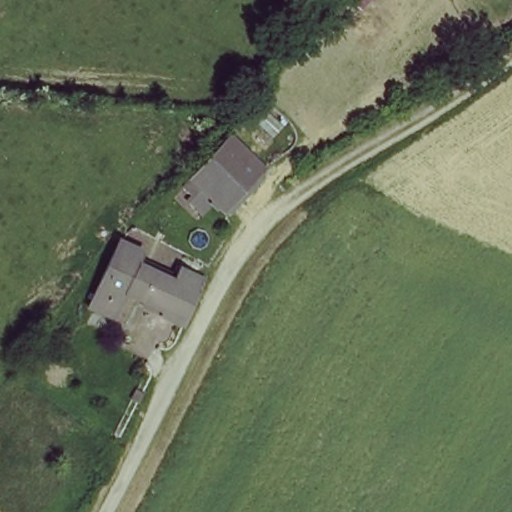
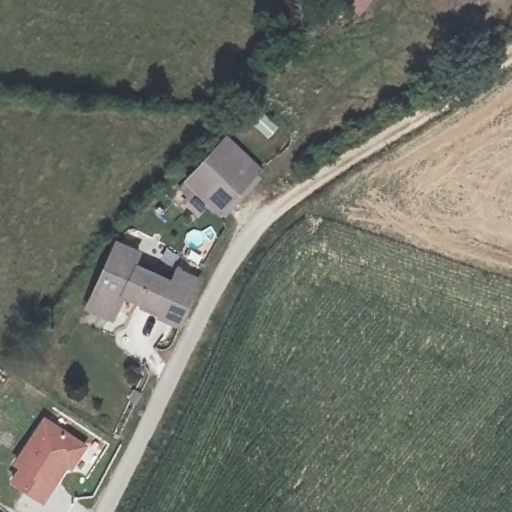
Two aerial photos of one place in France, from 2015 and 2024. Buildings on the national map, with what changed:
unchanged [(222,207),(188,176),(225,136),(260,168),(222,207)]
unchanged [(172,281),(177,267),(205,278),(200,288),(181,323),(125,300),(115,325),(82,309),(109,255),(105,254),(116,242),(143,254),(137,267),(155,275),(172,281)]
new [(43,416),(88,445),(72,470),(67,467),(42,504),(10,481),(17,467),(13,463),(43,416)]

